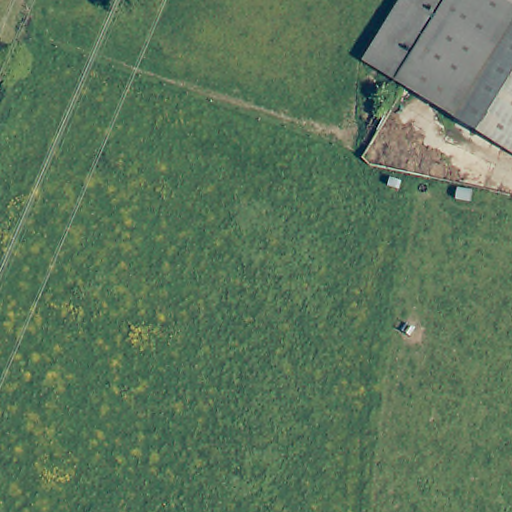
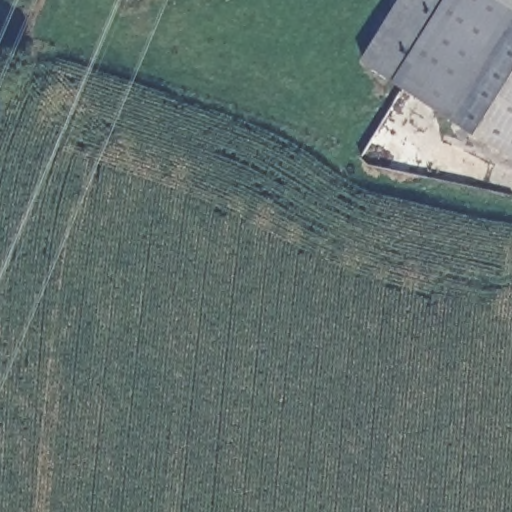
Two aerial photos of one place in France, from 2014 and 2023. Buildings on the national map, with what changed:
unchanged [(386,79),(359,62),(394,0),(432,0),(386,79)]
unchanged [(445,0),(510,0),(512,1),(512,21),(456,117),(397,84),(445,0)]
unchanged [(512,1),(510,0),(512,0),(512,1)]
unchanged [(512,21),(512,149),(456,117),(512,21)]

